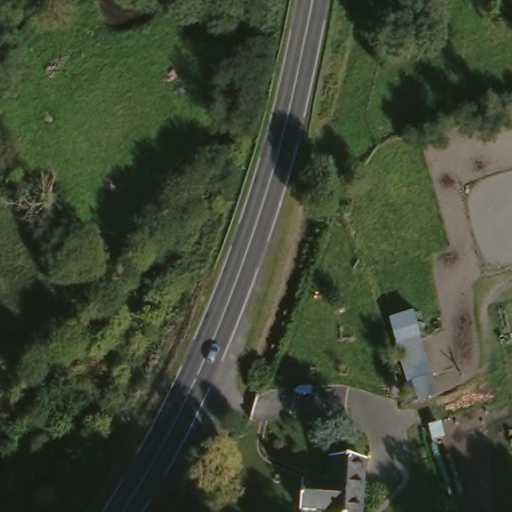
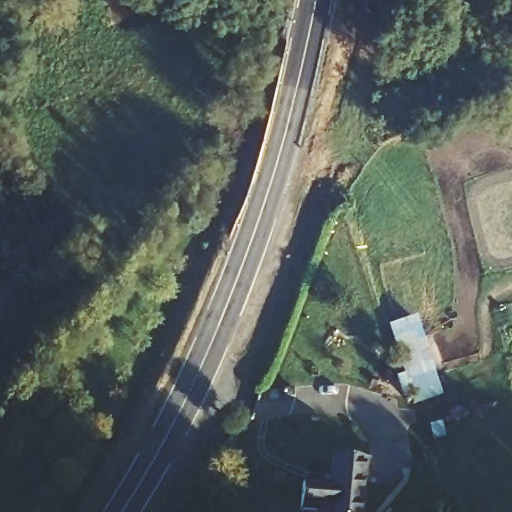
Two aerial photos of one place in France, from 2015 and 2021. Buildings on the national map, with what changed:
unchanged [(306,510),(308,475),(334,476),(335,452),(376,454),(373,512),(332,512),(306,510)]

